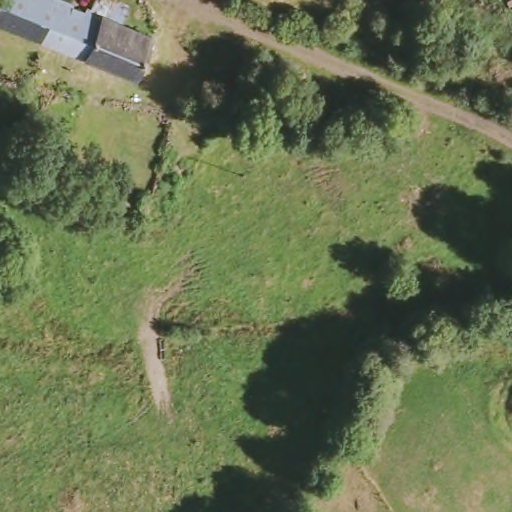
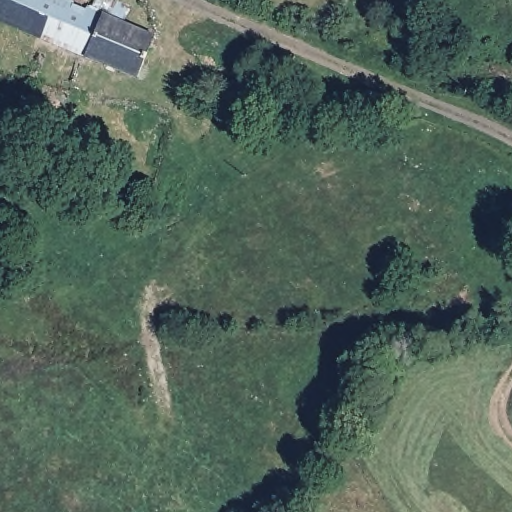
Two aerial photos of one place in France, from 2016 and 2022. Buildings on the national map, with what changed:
unchanged [(91,0),(96,0),(125,14),(120,22),(158,41),(138,82),(0,22),(0,5),(2,0),(68,0),(86,8),(91,0)]

